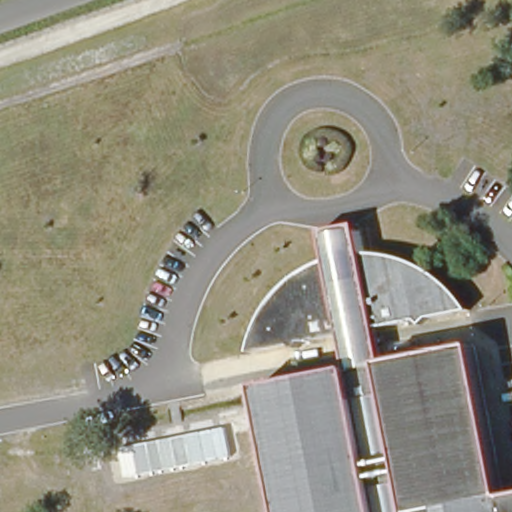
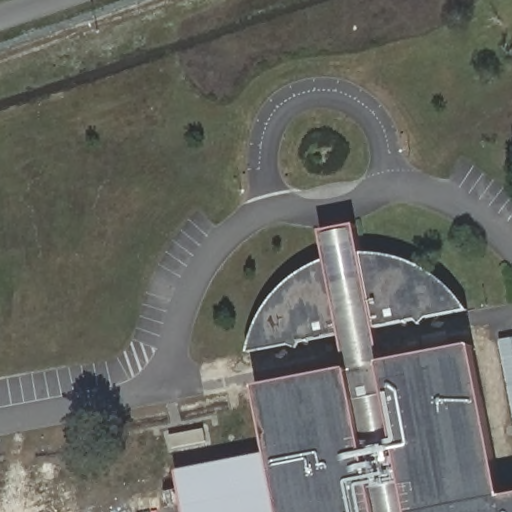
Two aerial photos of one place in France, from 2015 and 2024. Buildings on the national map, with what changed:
unchanged [(255,387),(343,370),(336,333),(258,349),(260,334),(264,319),(270,305),(279,292),(289,280),(301,271),(314,263),(329,258),(344,255),(359,254),(375,256),(390,260),(404,267),(417,275),(428,286),(437,298),(445,312),(374,326),(380,362),(464,345),(499,500),(512,497),(512,512),(279,512),(268,453),(255,387)]
new [(500,340),(512,337),(512,405),(500,340)]
new [(279,512),(188,512),(178,470),(268,453),(279,512)]

